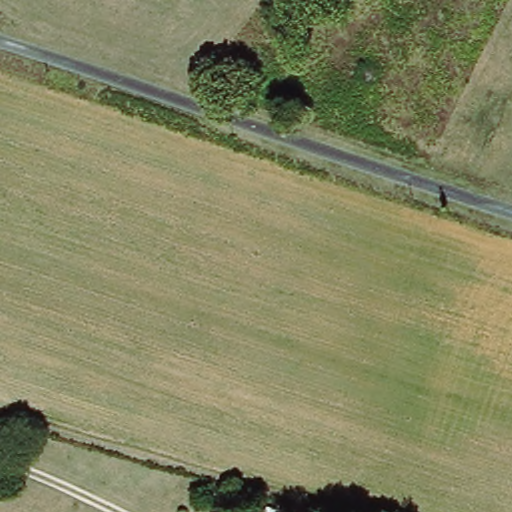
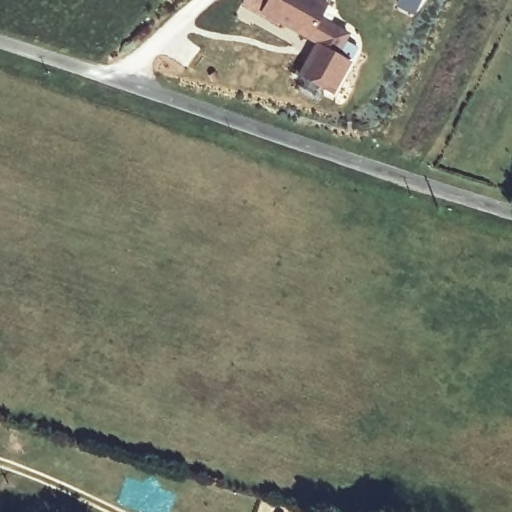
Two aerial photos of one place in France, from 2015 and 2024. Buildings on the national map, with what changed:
new [(329,7),(321,20),(350,36),(339,55),(352,62),(334,95),(299,77),(319,42),(310,38),(309,40),(260,13),(244,4),(247,0),(316,0),(329,7)]

